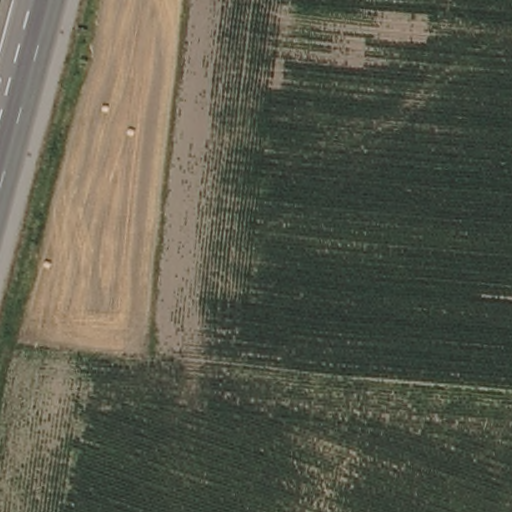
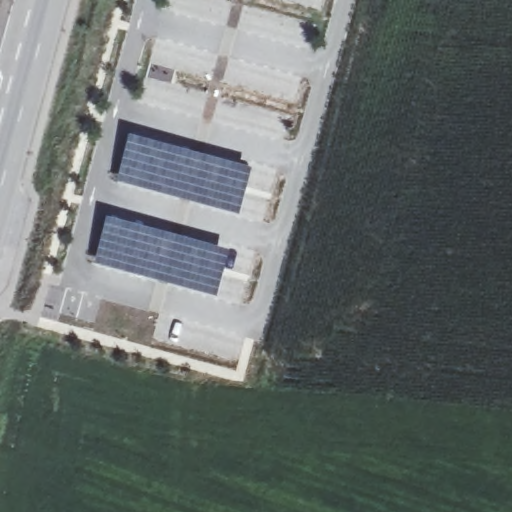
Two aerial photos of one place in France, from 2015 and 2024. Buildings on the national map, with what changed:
new [(129,131),(253,165),(240,215),(115,180),(129,131)]
new [(106,213),(198,237),(230,249),(217,295),(93,262),(106,213)]

